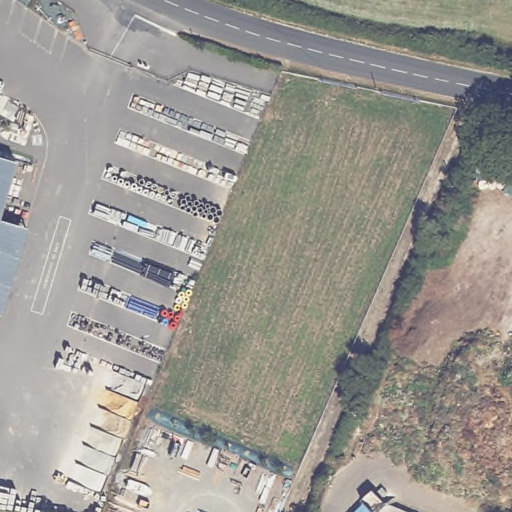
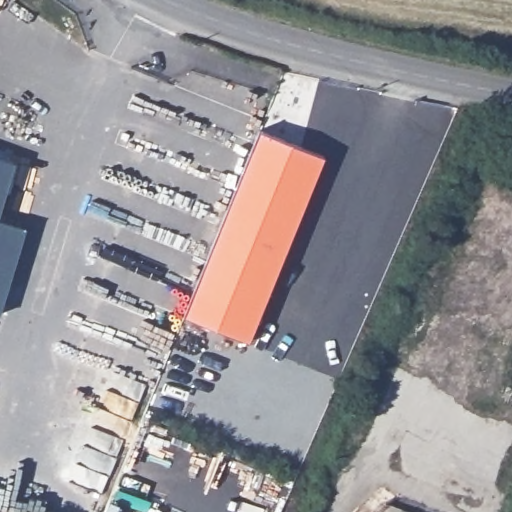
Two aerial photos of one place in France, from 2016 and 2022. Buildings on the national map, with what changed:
new [(260,128),(325,154),(250,339),(184,313),(260,128)]
unchanged [(17,162),(0,220),(0,157),(17,162)]
unchanged [(28,228),(2,315),(0,315),(0,220),(28,228)]

